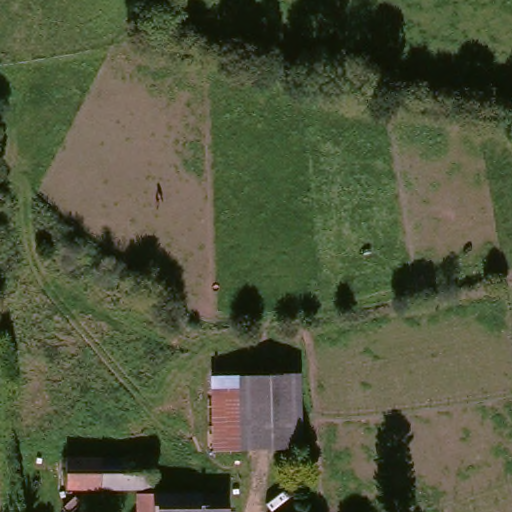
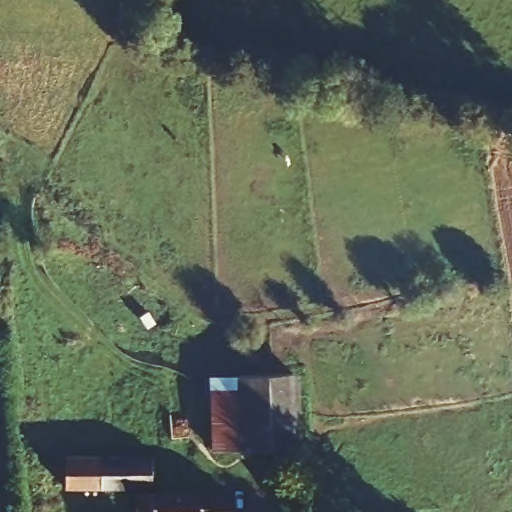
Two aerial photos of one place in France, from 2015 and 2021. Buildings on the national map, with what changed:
unchanged [(214,450),(211,375),(303,373),(304,448),(214,450)]
unchanged [(149,488),(59,488),(60,456),(151,455),(149,488)]
unchanged [(133,512),(133,492),(225,492),(225,512),(133,512)]

